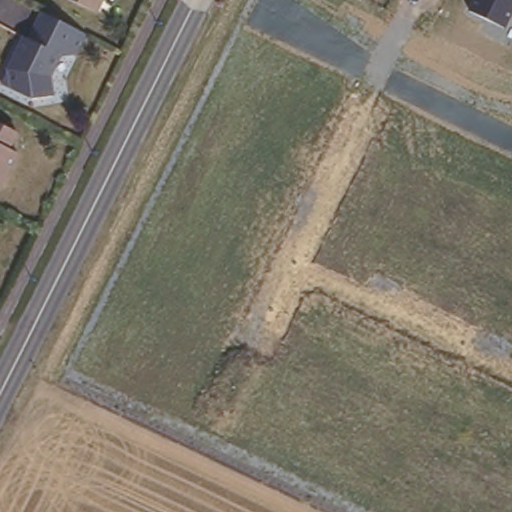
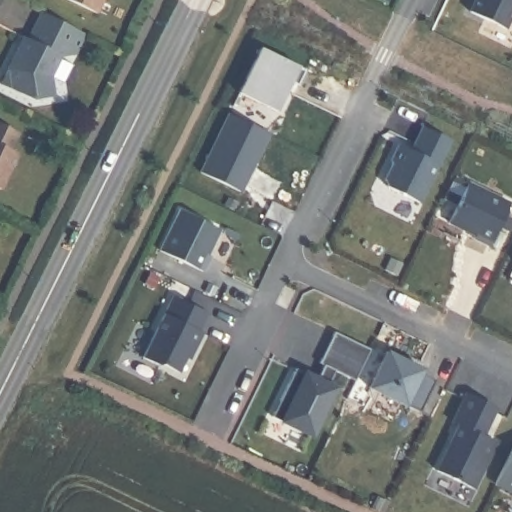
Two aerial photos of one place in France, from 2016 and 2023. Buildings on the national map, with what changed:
unchanged [(99,9),(79,0),(103,0),(99,9)]
unchanged [(475,0),(512,0),(512,17),(506,29),(470,11),(475,0)]
unchanged [(88,29),(77,50),(61,52),(60,52),(50,71),(55,91),(35,95),(4,80),(27,33),(31,35),(45,8),(88,29)]
new [(260,48),(305,70),(297,85),(290,82),(275,112),(238,93),(260,48)]
new [(268,133),(240,192),(200,172),(229,114),(268,133)]
unchanged [(10,144),(20,149),(2,185),(0,184),(0,119),(19,127),(10,144)]
new [(418,202),(386,187),(384,179),(391,164),(390,160),(398,145),(417,154),(420,147),(413,144),(422,126),(449,140),(418,202)]
new [(420,147),(417,154),(410,151),(413,144),(420,147)]
new [(488,246),(472,239),(474,235),(447,223),(466,183),(509,204),(488,246)]
new [(180,211),(219,230),(206,255),(210,257),(202,272),(160,251),(180,211)]
new [(142,357),(173,295),(209,313),(200,331),(203,332),(196,347),(192,345),(179,371),(175,373),(160,365),(142,357)]
new [(355,381),(335,371),(327,385),(334,388),(311,436),(271,417),(295,368),(317,378),(323,365),(319,362),(334,332),(370,349),(355,381)]
new [(418,412),(368,388),(386,352),(422,369),(420,374),(433,380),(418,412)]
new [(435,470),(457,425),(450,421),(465,393),(493,407),(480,436),(494,443),(472,488),(435,470)]
new [(512,448),(512,492),(495,483),(512,448)]

